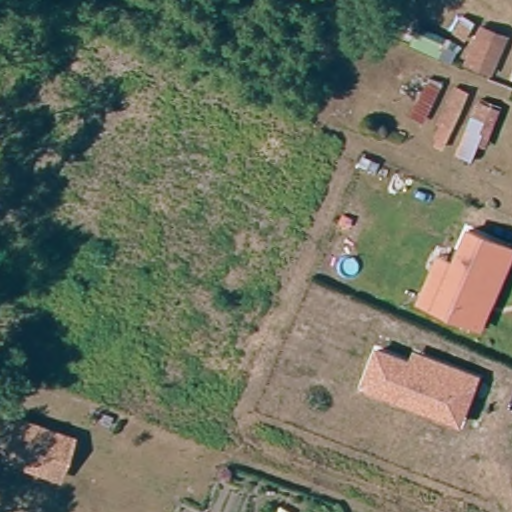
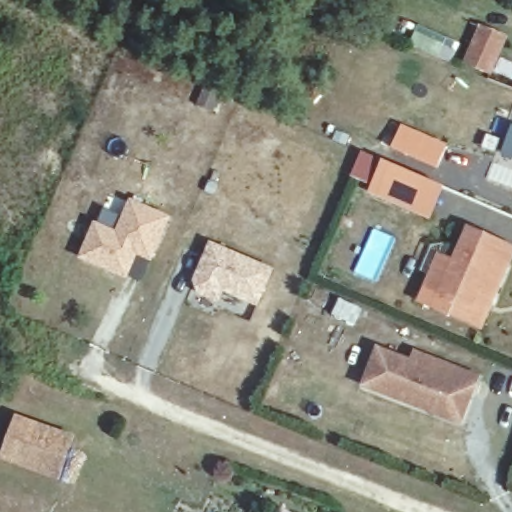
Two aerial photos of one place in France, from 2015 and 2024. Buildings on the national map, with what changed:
unchanged [(491,77),(463,65),(478,25),(508,35),(491,77)]
new [(447,145),(437,166),(392,147),(402,124),(447,145)]
new [(512,157),(502,153),(512,125),(512,157)]
new [(428,219),(368,193),(382,162),(442,187),(428,219)]
new [(79,257),(94,222),(116,231),(130,197),(170,216),(152,260),(136,254),(126,276),(79,257)]
unchanged [(481,328),(421,305),(432,277),(438,260),(453,266),(467,231),(512,249),(491,301),(486,313),(481,328)]
new [(223,290),(217,301),(197,292),(192,281),(210,242),(274,268),(258,306),(223,290)]
unchanged [(460,425),(362,387),(377,347),(476,386),(460,425)]
unchanged [(17,416),(72,438),(59,476),(1,456),(17,416)]

